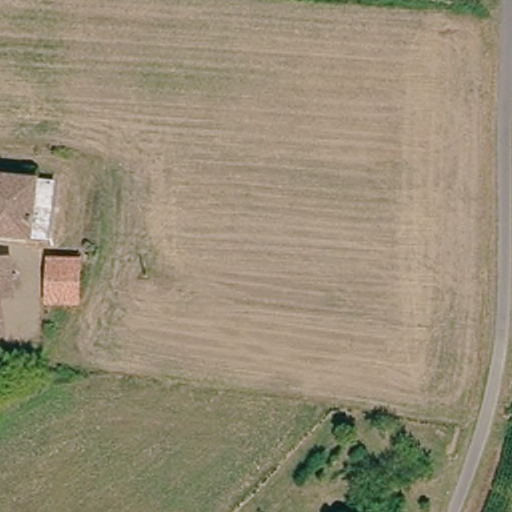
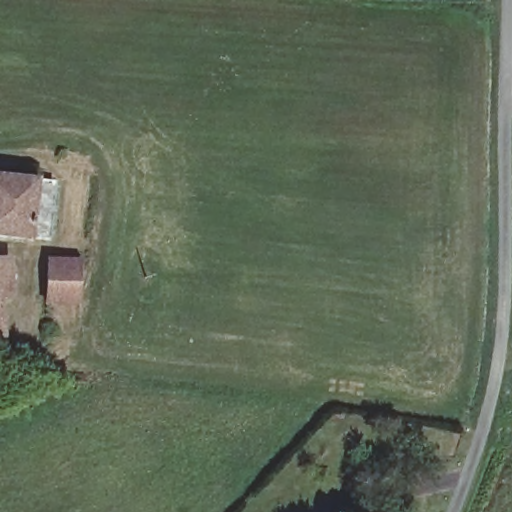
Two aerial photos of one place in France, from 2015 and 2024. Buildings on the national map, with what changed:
unchanged [(0,241),(0,170),(12,172),(13,177),(37,181),(63,184),(55,250),(0,241)]
unchanged [(68,307),(37,306),(40,259),(69,262),(68,307)]
unchanged [(8,266),(8,307),(0,307),(0,266),(8,266)]

